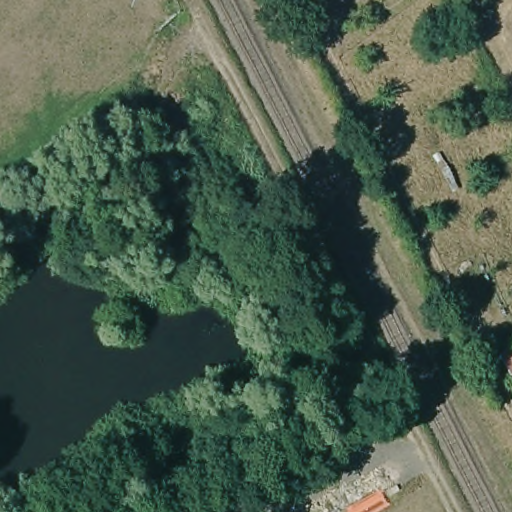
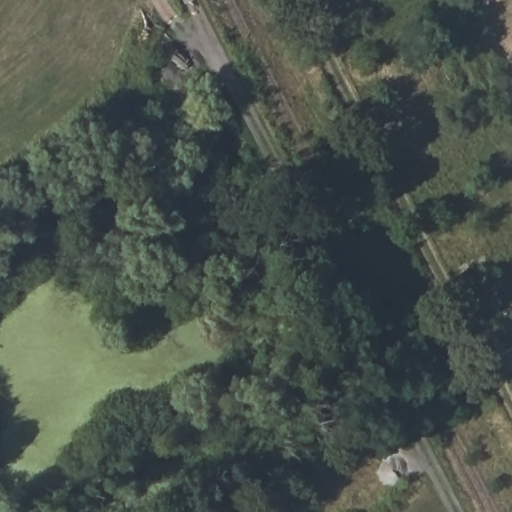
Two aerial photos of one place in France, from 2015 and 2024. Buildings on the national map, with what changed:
unchanged [(512,391),(494,358),(512,346),(512,391)]

